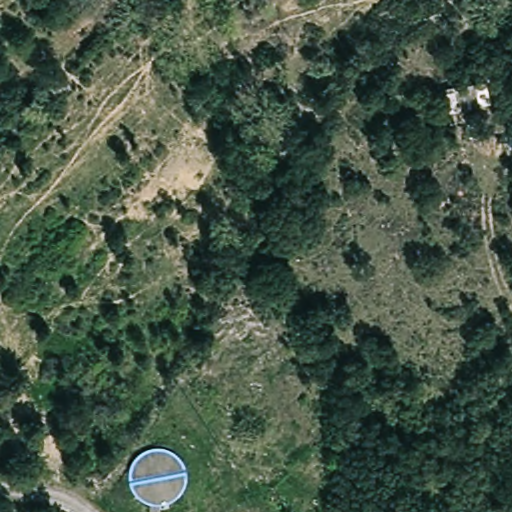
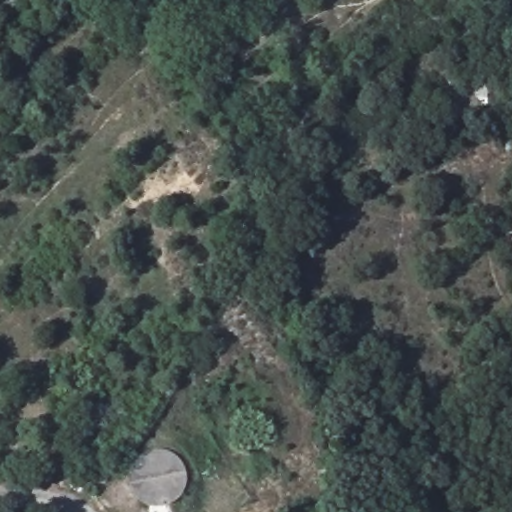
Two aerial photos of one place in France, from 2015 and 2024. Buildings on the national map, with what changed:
unchanged [(491,106),(474,110),(474,109),(447,116),(441,90),(486,80),(491,106)]

